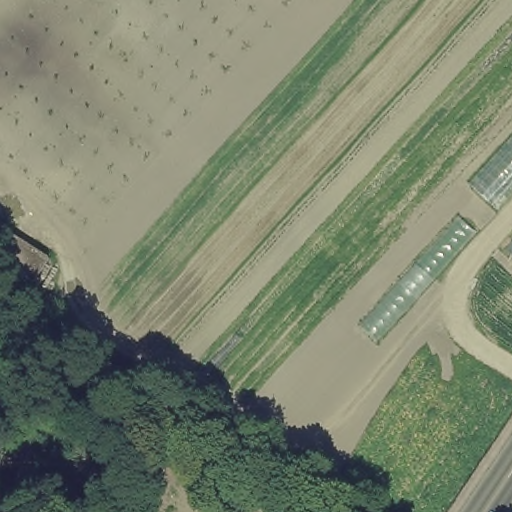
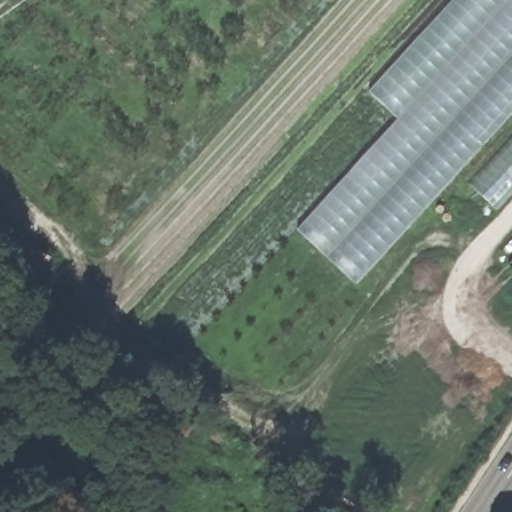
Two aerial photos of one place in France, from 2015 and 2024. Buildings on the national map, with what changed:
new [(512,0),(512,114),(356,284),(268,203),(452,0),(512,0)]
unchanged [(512,135),(512,194),(498,209),(469,183),(512,135)]
unchanged [(0,224),(51,255),(36,283),(0,263),(0,224)]
unchanged [(512,241),(512,257),(504,250),(512,241)]

